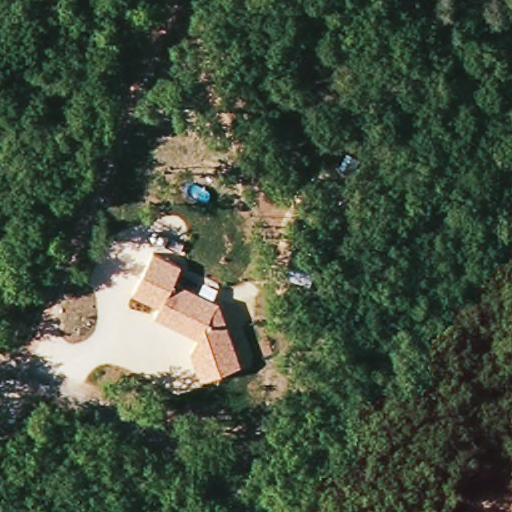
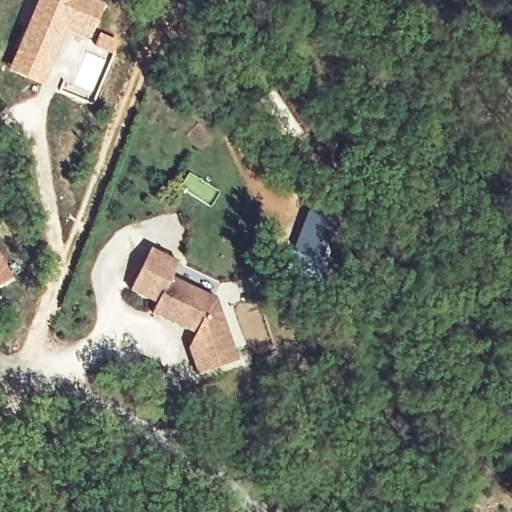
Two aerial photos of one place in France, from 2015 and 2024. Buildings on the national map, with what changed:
new [(36,0),(98,0),(106,3),(93,32),(119,39),(113,54),(67,31),(43,85),(6,69),(36,0)]
unchanged [(195,333),(153,315),(157,303),(130,291),(151,248),(180,261),(172,278),(216,298),(237,360),(197,374),(189,348),(195,333)]
new [(290,254),(312,262),(305,283),(283,275),(290,254)]
new [(0,293),(0,262),(13,285),(0,293)]

